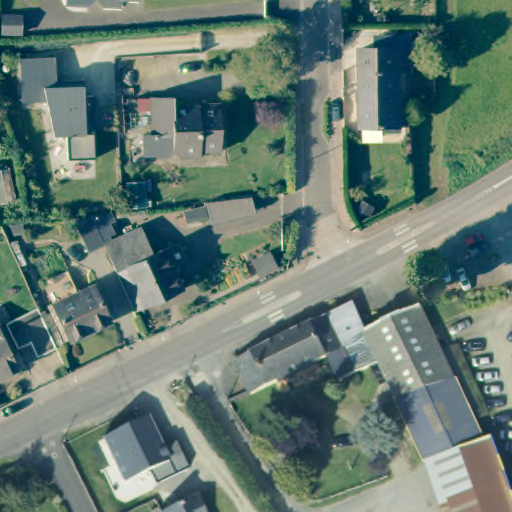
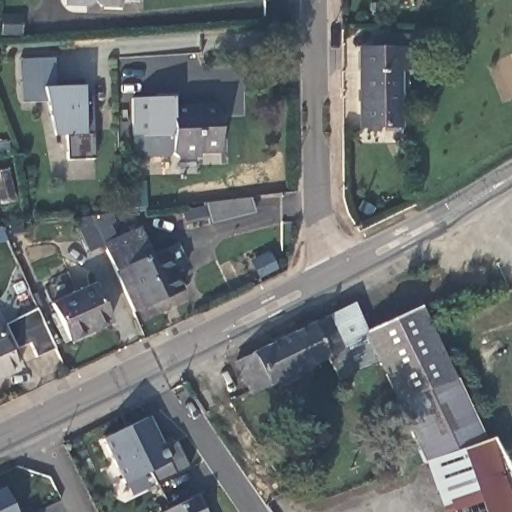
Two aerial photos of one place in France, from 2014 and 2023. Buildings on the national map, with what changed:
unchanged [(62,3),(63,0),(92,0),(87,4),(62,3)]
unchanged [(100,5),(94,0),(118,0),(117,6),(100,5)]
unchanged [(126,0),(134,0),(135,1),(126,0)]
unchanged [(20,20),(20,37),(1,37),(1,20),(20,20)]
unchanged [(401,123),(361,124),(361,67),(363,67),(362,49),(401,48),(401,123)]
unchanged [(56,58),(57,89),(84,87),(84,99),(92,99),(95,159),(67,160),(67,135),(54,136),(48,104),(22,103),(21,60),(56,58)]
unchanged [(172,97),(172,102),(220,102),(221,152),(201,152),(201,157),(178,157),(174,152),(170,157),(142,157),(142,133),(151,134),(150,97),(172,97)]
unchanged [(252,211),(207,217),(205,202),(250,197),(252,211)]
unchanged [(72,217),(91,215),(111,212),(115,221),(107,224),(112,235),(102,240),(105,246),(90,252),(72,217)]
unchanged [(154,257),(162,254),(161,252),(179,244),(187,262),(173,269),(182,288),(135,311),(107,252),(105,247),(141,230),(154,257)]
unchanged [(95,286),(112,322),(71,341),(54,305),(95,286)]
unchanged [(360,302),(372,329),(425,302),(494,447),(427,466),(421,468),(389,402),(395,400),(380,368),(341,387),(325,362),(311,330),(360,302)]
unchanged [(32,352),(26,337),(15,342),(5,317),(22,310),(22,312),(35,306),(52,343),(32,352)]
unchanged [(311,330),(325,362),(251,399),(236,367),(311,330)]
unchanged [(0,376),(0,337),(15,369),(0,376)]
unchanged [(149,417),(164,448),(177,443),(189,470),(156,485),(149,472),(124,483),(103,438),(149,417)]
unchanged [(427,466),(494,447),(496,447),(512,494),(512,512),(443,512),(427,466)]
new [(0,489),(4,487),(16,512),(0,512),(0,489)]
unchanged [(192,490),(203,512),(157,512),(156,508),(192,490)]

